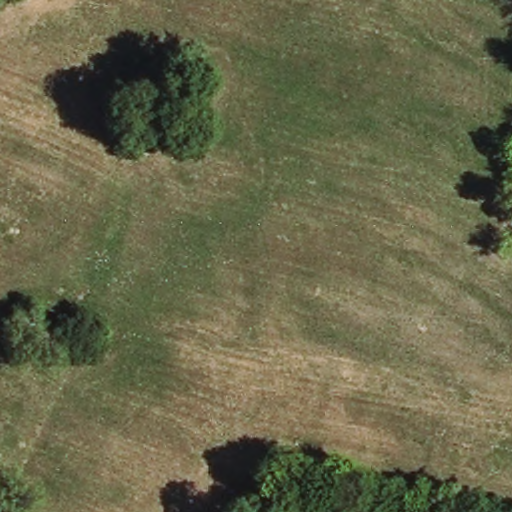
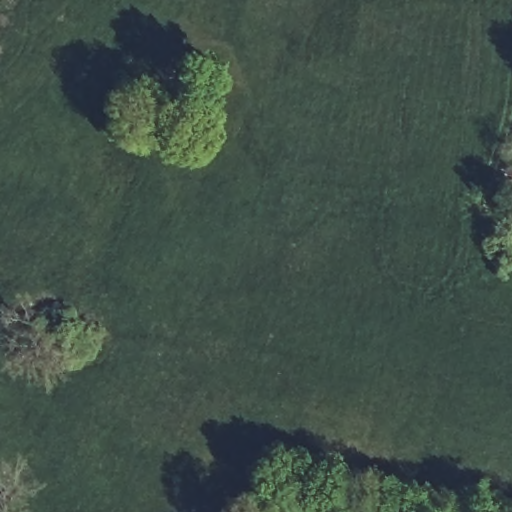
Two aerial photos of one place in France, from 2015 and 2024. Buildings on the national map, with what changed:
[]

